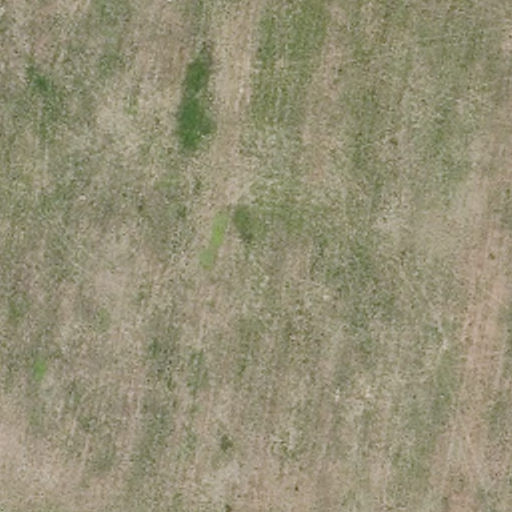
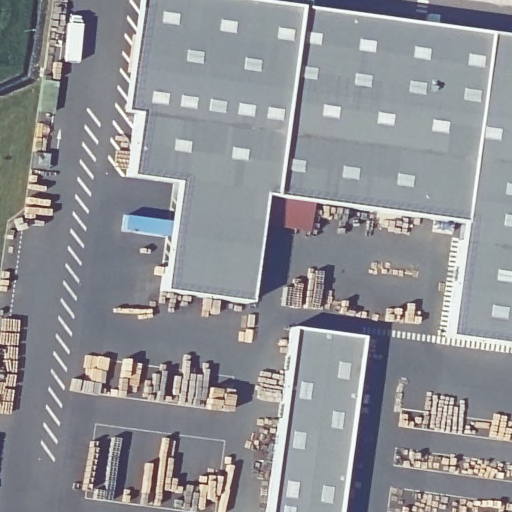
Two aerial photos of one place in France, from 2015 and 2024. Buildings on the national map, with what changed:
new [(512,41),(512,350),(445,341),(461,227),(262,199),(246,306),(159,293),(174,185),(126,178),(151,0),(226,0),(512,41)]
new [(358,342),(334,512),(264,512),(289,332),(358,342)]

